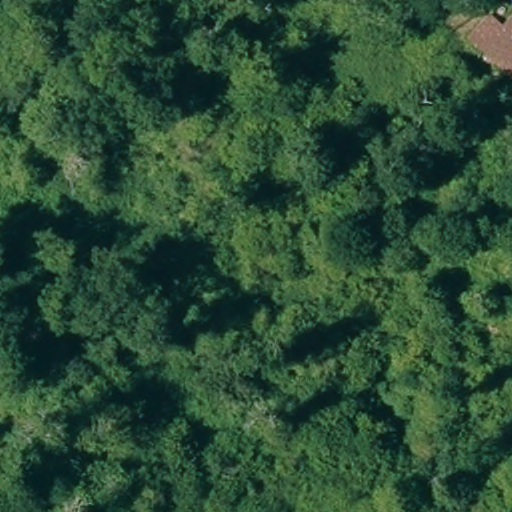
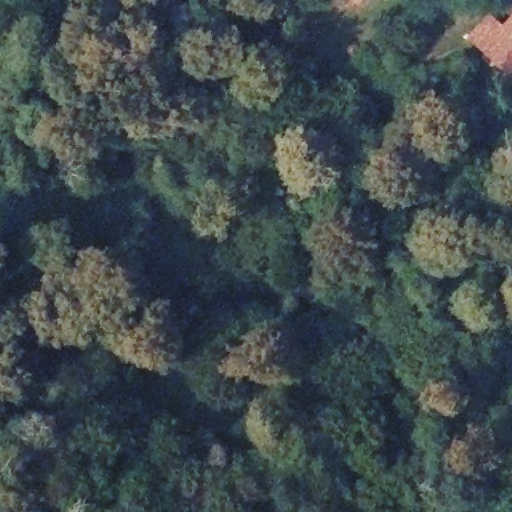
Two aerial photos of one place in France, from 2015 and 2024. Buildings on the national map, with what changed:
unchanged [(512,11),(512,77),(480,50),(512,11)]

